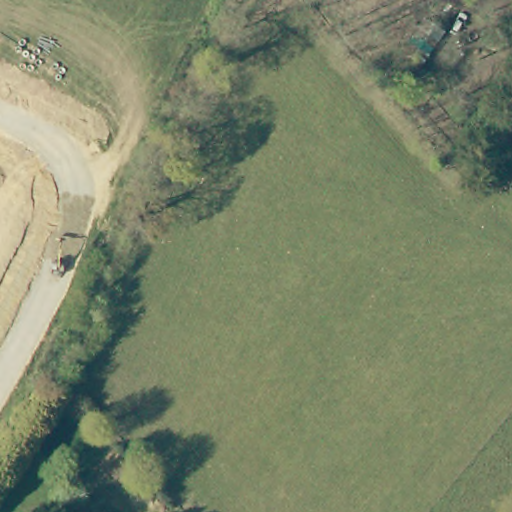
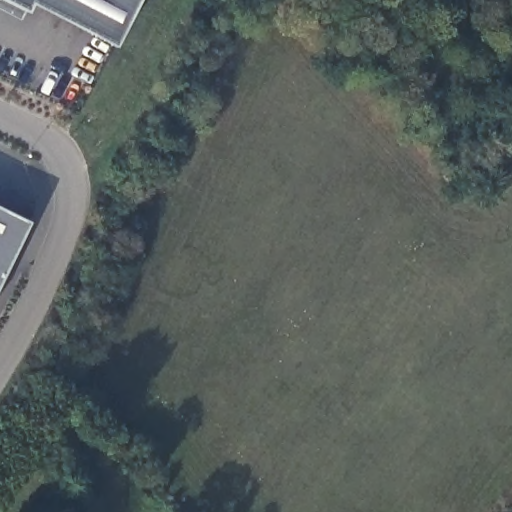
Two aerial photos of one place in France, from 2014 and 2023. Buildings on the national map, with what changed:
new [(114,46),(30,2),(26,11),(5,0),(137,0),(114,46)]
unchanged [(426,37),(448,3),(474,18),(462,38),(443,30),(416,80),(395,67),(417,33),(426,37)]
new [(0,279),(0,206),(29,220),(0,279)]

